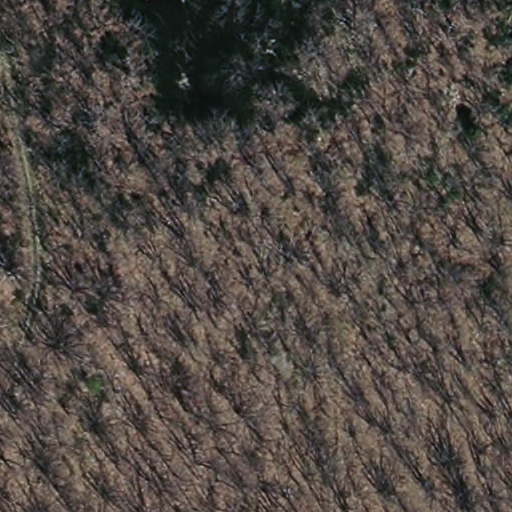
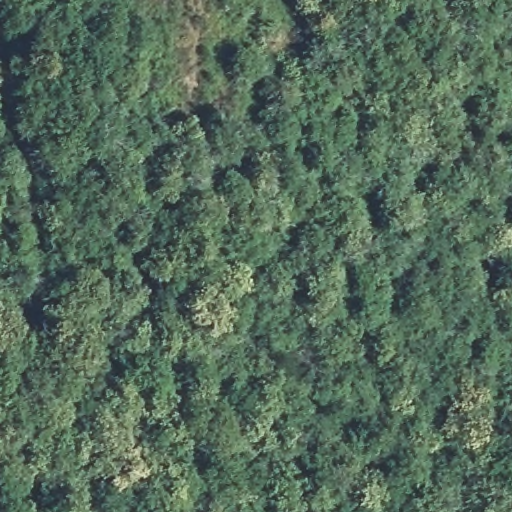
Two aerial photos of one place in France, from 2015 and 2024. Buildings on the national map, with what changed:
[]

